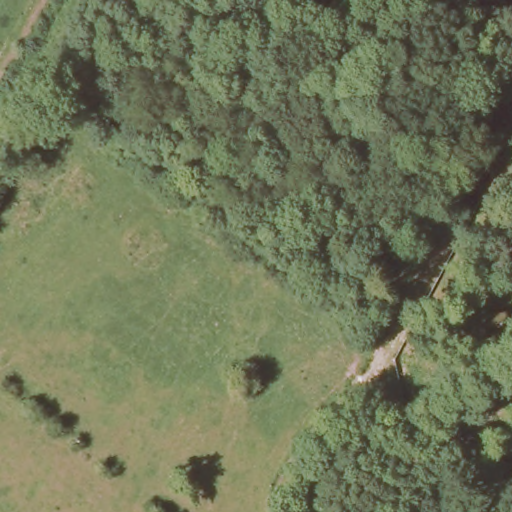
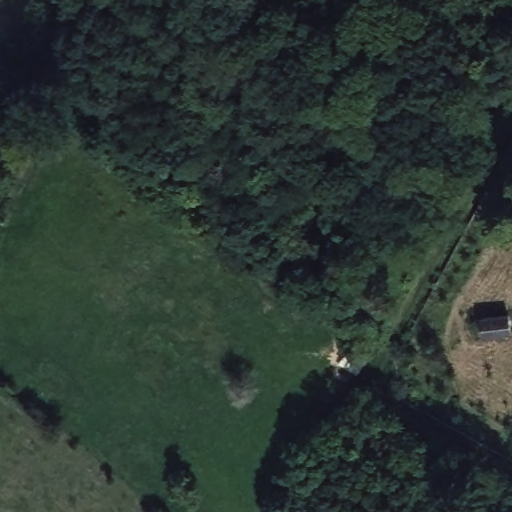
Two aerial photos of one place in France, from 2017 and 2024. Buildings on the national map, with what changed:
unchanged [(483,347),(482,328),(508,326),(510,344),(483,347)]

